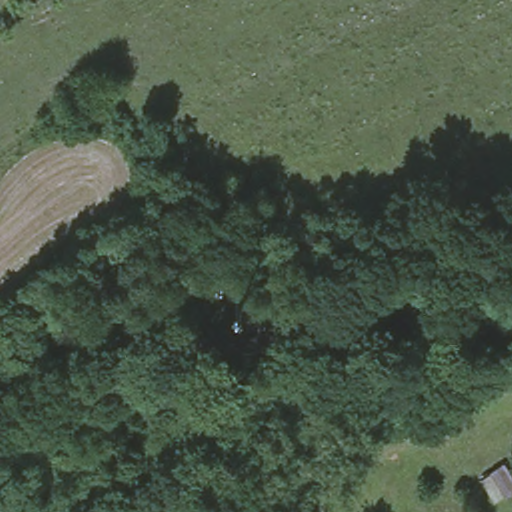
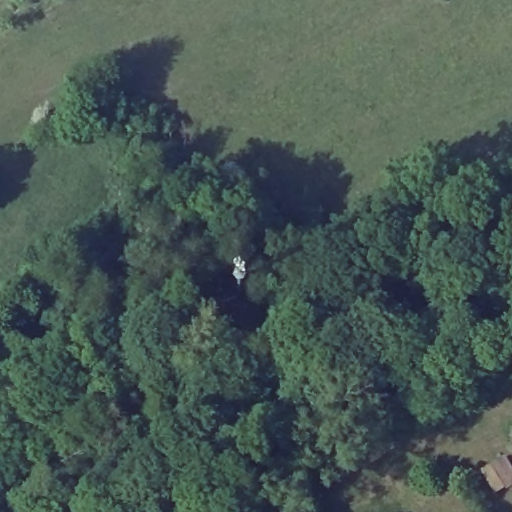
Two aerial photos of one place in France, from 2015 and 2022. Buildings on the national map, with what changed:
unchanged [(512,467),(512,494),(495,503),(479,478),(506,458),(512,467)]

